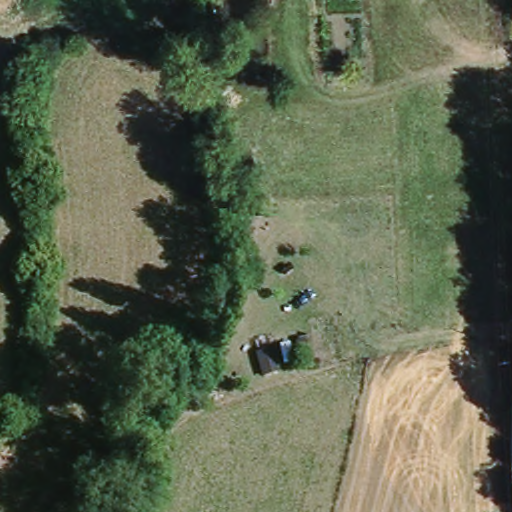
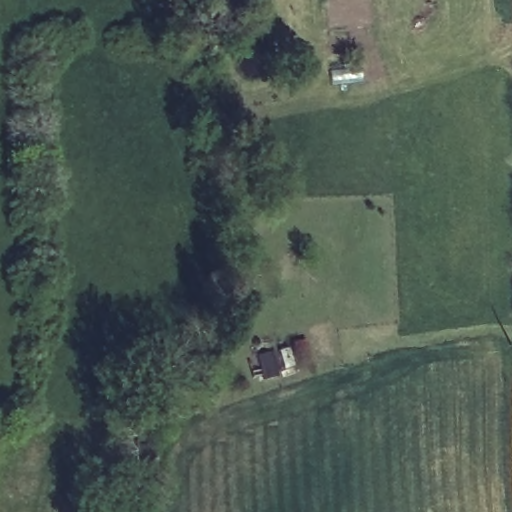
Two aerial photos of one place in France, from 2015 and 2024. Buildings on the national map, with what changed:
unchanged [(267,366),(250,373),(245,355),(262,350),(267,366)]

